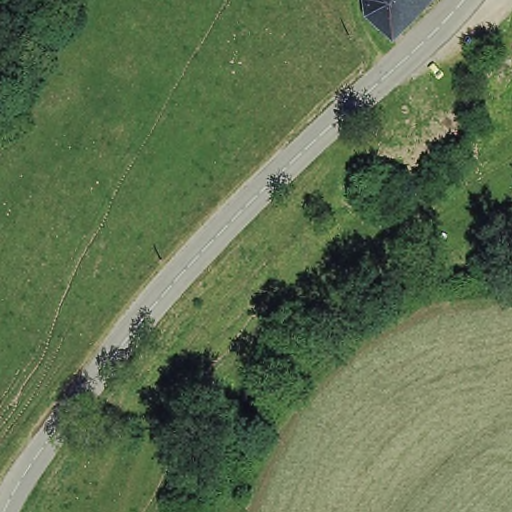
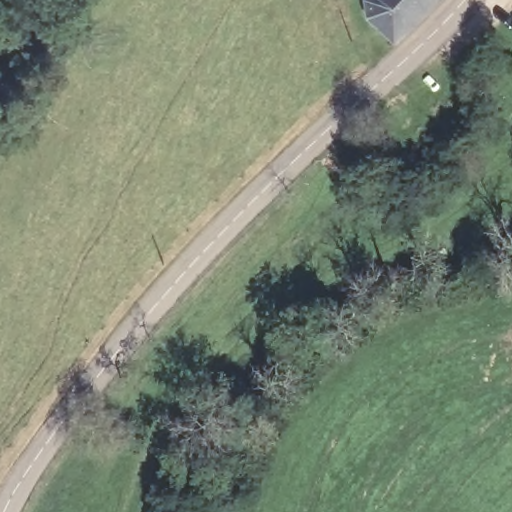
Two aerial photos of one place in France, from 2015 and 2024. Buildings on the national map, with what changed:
unchanged [(367,6),(371,0),(385,0),(416,27),(398,47),(369,26),(367,6)]
unchanged [(416,27),(385,0),(438,0),(416,27)]

